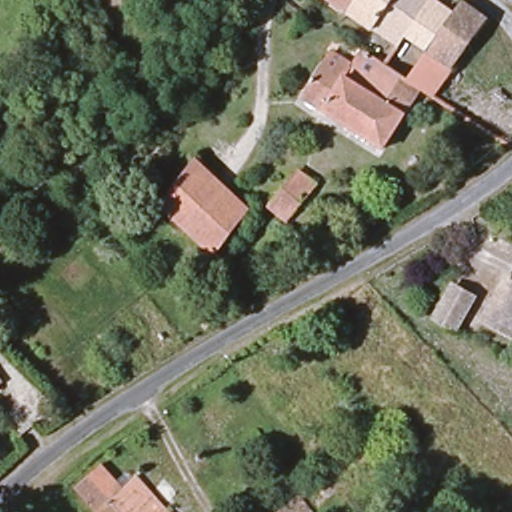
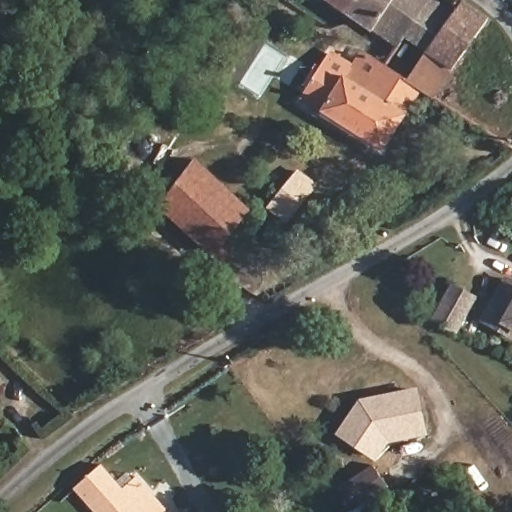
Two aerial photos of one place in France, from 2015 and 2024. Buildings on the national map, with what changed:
unchanged [(344,22),(317,3),(319,0),(360,0),(344,22)]
unchanged [(360,0),(420,0),(429,6),(400,45),(392,56),(344,22),(360,0)]
unchanged [(457,11),(482,28),(450,71),(425,53),(450,21),(457,11)]
unchanged [(425,53),(450,71),(427,104),(417,98),(399,86),(420,59),(425,53)]
unchanged [(417,98),(380,154),(297,102),(331,55),(351,67),(356,58),(399,86),(417,98)]
unchanged [(155,213),(189,169),(244,209),(212,254),(155,213)]
unchanged [(267,212),(295,179),(311,192),(283,225),(267,212)]
unchanged [(215,259),(224,245),(235,252),(225,266),(215,259)]
unchanged [(501,334),(482,323),(509,283),(512,285),(512,341),(501,334)]
unchanged [(430,318),(448,290),(470,304),(452,333),(430,318)]
new [(364,403),(372,402),(418,391),(427,433),(390,442),(378,459),(342,435),(360,410),(364,403)]
unchanged [(94,470),(114,492),(141,469),(168,499),(154,512),(85,512),(67,492),(94,470)]
unchanged [(293,495),(310,481),(323,496),(307,509),(293,495)]
unchanged [(304,512),(283,512),(295,502),(304,512)]

